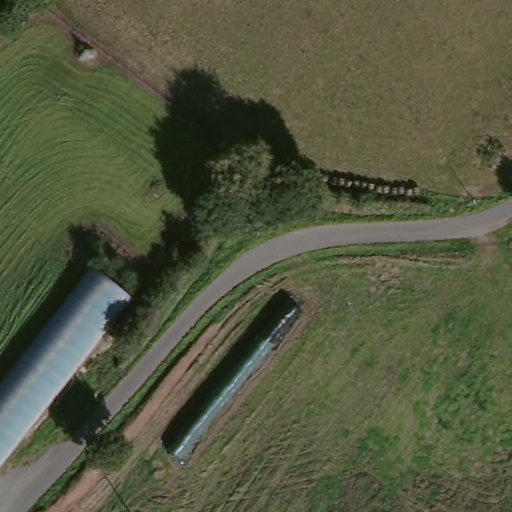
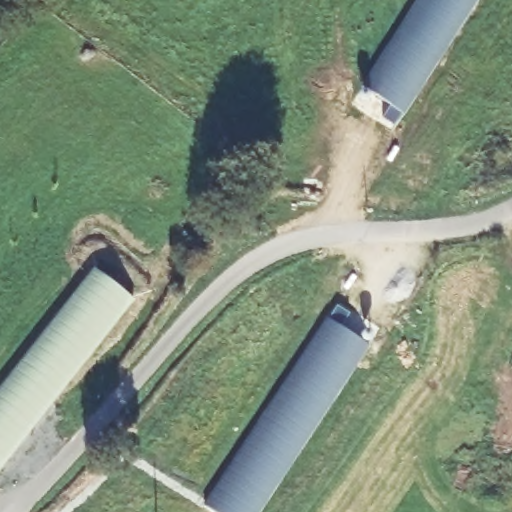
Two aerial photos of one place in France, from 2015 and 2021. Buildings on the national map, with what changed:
new [(382,118),(390,105),(360,86),(417,0),(477,0),(395,125),(382,118)]
unchanged [(100,257),(135,285),(62,381),(0,460),(0,387),(23,357),(100,257)]
new [(340,325),(368,346),(258,512),(213,512),(205,507),(336,306),(348,314),(340,325)]

